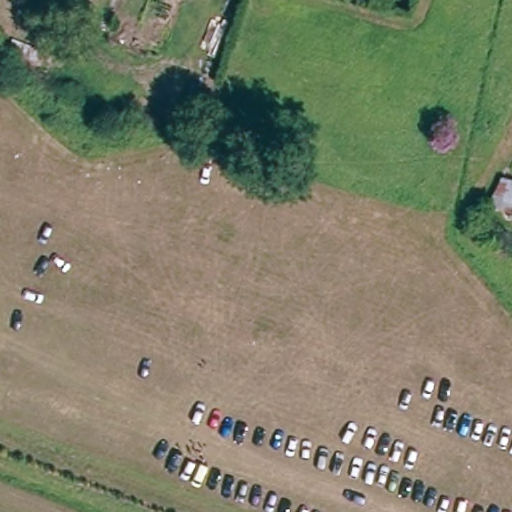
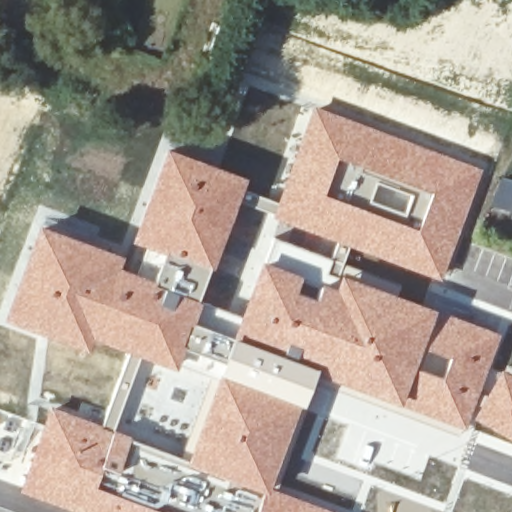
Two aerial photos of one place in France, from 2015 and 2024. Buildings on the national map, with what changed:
new [(256,194),(277,201),(314,105),(483,168),(442,280),(349,246),(336,242),(271,217),(272,214),(252,205),(256,194)]
new [(166,146),(247,176),(211,267),(143,246),(129,241),(166,146)]
unchanged [(499,172),(512,177),(512,214),(486,205),(499,172)]
unchanged [(512,220),(511,220),(512,216),(512,220)]
new [(40,224),(124,254),(120,264),(135,270),(199,299),(202,301),(195,320),(183,349),(176,370),(94,340),(88,352),(2,318),(40,224)]
new [(272,235),(331,257),(336,242),(349,246),(340,271),(334,286),(318,281),(304,277),(262,259),(272,235)]
new [(143,246),(211,267),(199,299),(135,270),(143,246)]
new [(219,363),(232,333),(260,258),(262,259),(304,277),(318,281),(334,286),(340,271),(500,333),(464,428),(316,374),(302,405),(216,371),(219,363)]
new [(195,320),(232,333),(219,363),(183,349),(195,320)]
new [(512,371),(512,440),(473,419),(504,366),(512,371)]
new [(199,412),(216,371),(302,405),(291,428),(269,486),(265,493),(231,479),(200,471),(185,463),(199,412)]
new [(131,435),(118,472),(101,466),(95,484),(170,512),(80,512),(19,490),(49,405),(113,428),(131,435)]
new [(212,481),(213,478),(200,471),(231,479),(265,493),(258,512),(194,512),(208,480),(212,481)]
new [(269,486),(335,512),(258,512),(265,493),(269,486)]

